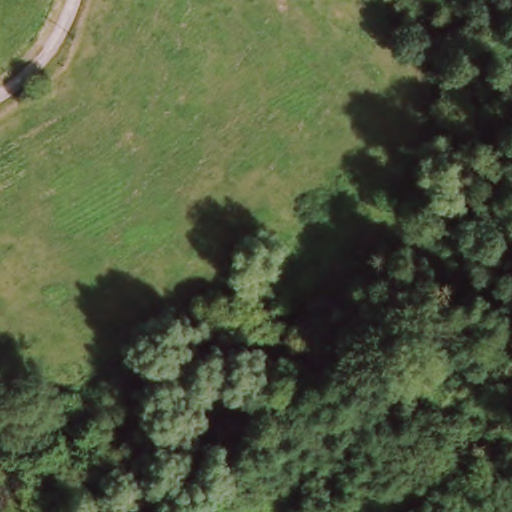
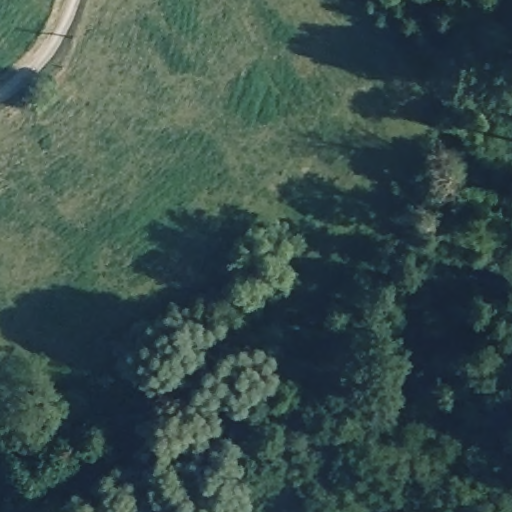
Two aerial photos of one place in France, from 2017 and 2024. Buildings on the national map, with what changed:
[]

